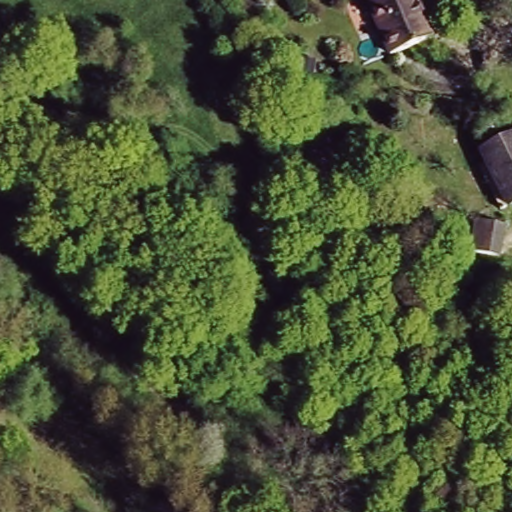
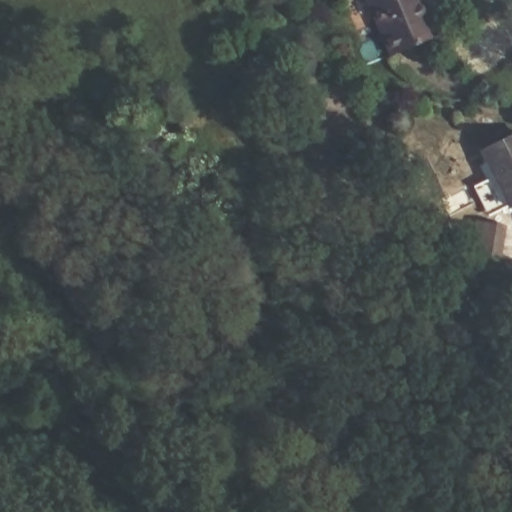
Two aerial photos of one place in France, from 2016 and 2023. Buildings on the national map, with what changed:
unchanged [(423,0),(439,38),(395,58),(371,0),(423,0)]
unchanged [(512,205),(507,208),(482,162),(491,156),(486,147),(512,135),(512,205)]
unchanged [(468,253),(475,219),(498,223),(492,257),(468,253)]

